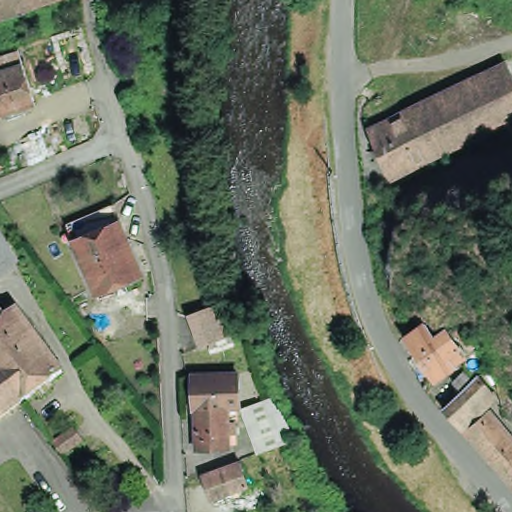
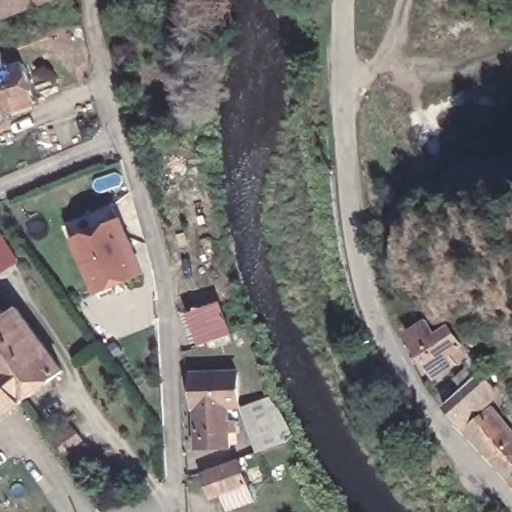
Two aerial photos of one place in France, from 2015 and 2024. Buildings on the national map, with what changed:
unchanged [(0,16),(0,0),(44,0),(0,16)]
unchanged [(5,114),(0,115),(0,59),(18,53),(22,65),(35,103),(30,105),(32,112),(7,121),(5,114)]
demolished [(506,71),(512,85),(512,124),(428,159),(408,112),(506,71)]
demolished [(387,121),(408,112),(428,159),(407,167),(387,121)]
demolished [(407,167),(390,175),(369,128),(387,121),(407,167)]
unchanged [(117,295),(114,287),(96,293),(73,238),(67,224),(113,205),(120,219),(142,275),(125,282),(128,291),(117,295)]
unchanged [(17,258),(0,270),(0,232),(17,258)]
unchanged [(200,345),(190,316),(219,305),(223,317),(225,316),(226,318),(225,318),(230,333),(200,345)]
unchanged [(3,317),(15,307),(61,371),(19,403),(0,377),(0,312),(3,317)]
unchanged [(415,353),(418,351),(407,335),(426,323),(435,335),(440,332),(441,335),(449,330),(462,320),(470,328),(480,339),(471,347),(460,336),(457,332),(453,336),(467,356),(436,377),(430,368),(425,372),(414,355),(415,353)]
unchanged [(443,406),(478,372),(492,387),(457,420),(443,406)]
unchanged [(230,422),(230,433),(223,433),(223,448),(191,450),(190,408),(188,408),(187,375),(232,373),(234,407),(235,422),(230,422)]
unchanged [(19,403),(0,417),(0,377),(19,403)]
unchanged [(491,409),(512,433),(512,482),(467,431),(491,409)]
unchanged [(257,451),(252,437),(248,422),(257,417),(267,412),(276,429),(282,442),(257,451)]
unchanged [(52,442),(72,428),(81,440),(61,455),(52,442)]
unchanged [(196,475),(235,461),(243,485),(205,498),(196,475)]

